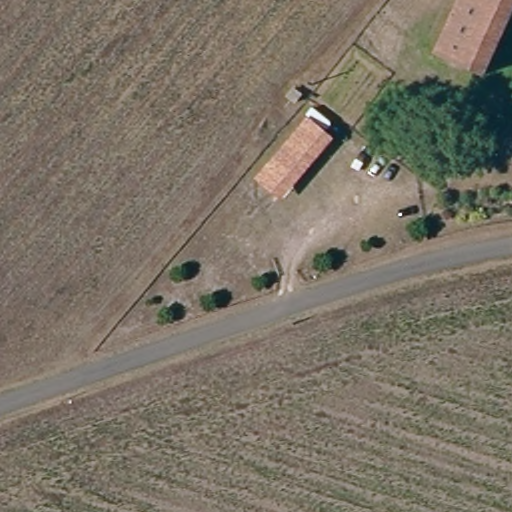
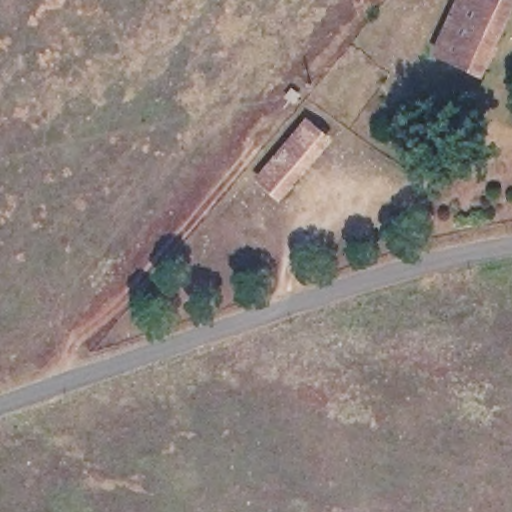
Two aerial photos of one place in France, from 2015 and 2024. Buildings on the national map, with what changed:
unchanged [(485,77),(436,53),(461,0),(512,0),(512,18),(505,35),(485,77)]
unchanged [(311,120),(328,134),(280,192),(264,179),(311,120)]

